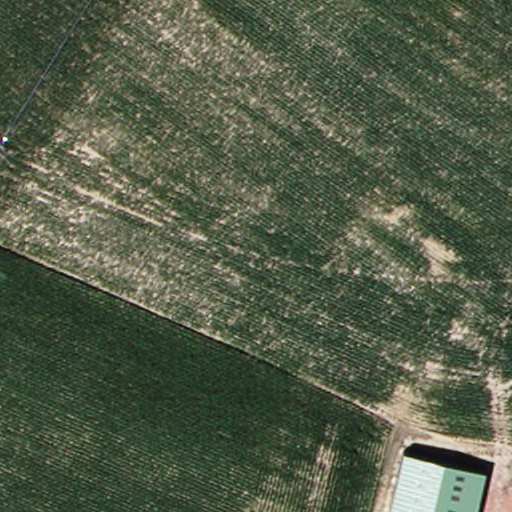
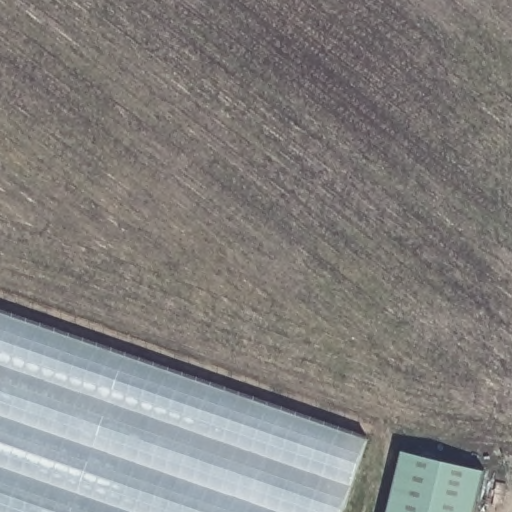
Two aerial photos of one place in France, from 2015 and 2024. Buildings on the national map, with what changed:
demolished [(441,306),(365,241),(390,211),(464,277),(441,306)]
new [(342,512),(0,512),(0,314),(368,438),(342,512)]
demolished [(459,460),(438,448),(368,410),(384,380),(453,418),(473,429),(459,460)]
new [(388,512),(403,451),(484,471),(475,512),(388,512)]

